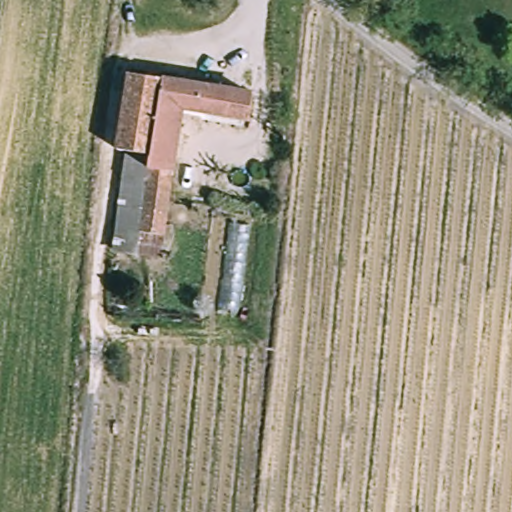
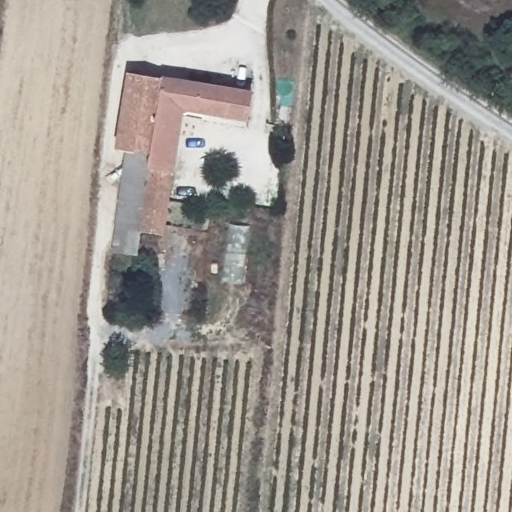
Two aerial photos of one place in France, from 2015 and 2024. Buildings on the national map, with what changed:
unchanged [(131,77),(250,95),(246,122),(180,115),(166,241),(141,236),(148,155),(130,155),(117,154),(131,77)]
unchanged [(120,233),(130,155),(148,155),(141,236),(120,233)]

